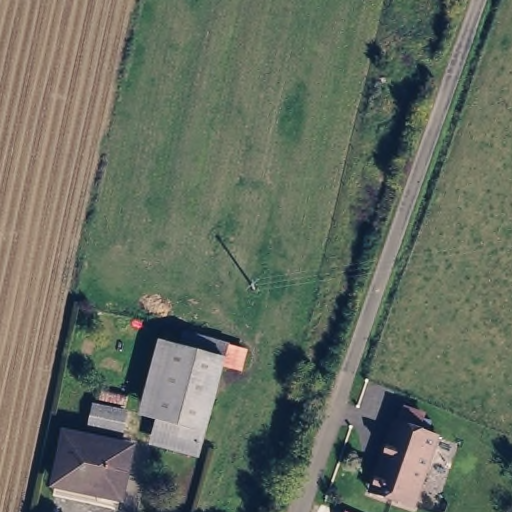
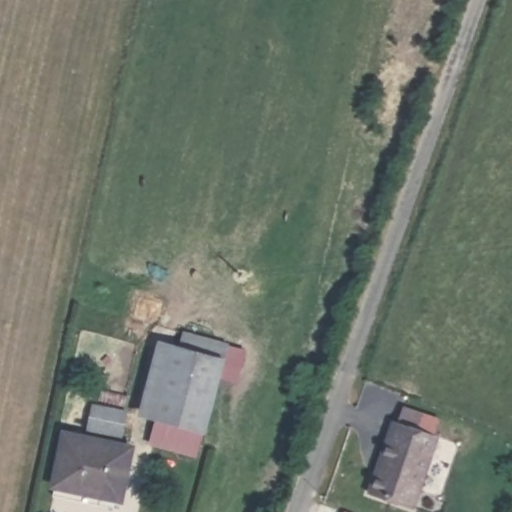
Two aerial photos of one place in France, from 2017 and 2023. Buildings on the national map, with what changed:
unchanged [(163,443),(169,422),(156,418),(176,345),(182,347),(186,334),(231,347),(227,357),(203,454),(163,443)]
unchanged [(115,436),(84,430),(91,405),(121,411),(115,436)]
unchanged [(369,467),(389,418),(434,436),(408,505),(373,492),(362,488),(369,467)]
unchanged [(118,499),(55,483),(64,435),(130,450),(118,499)]

